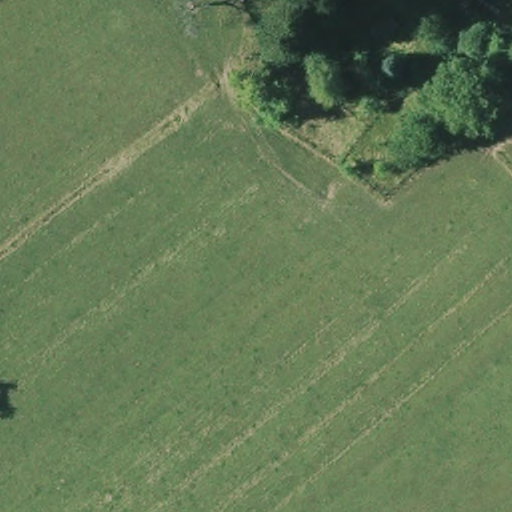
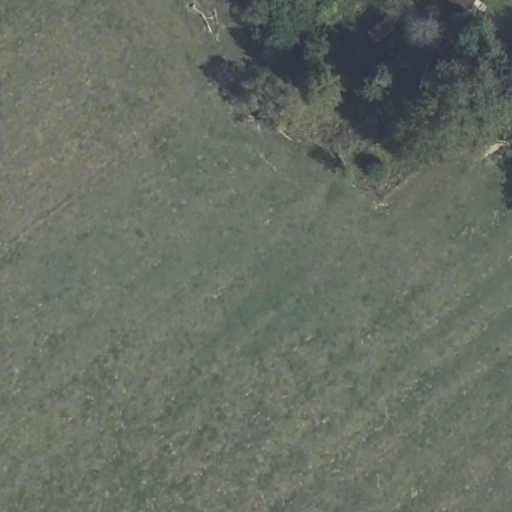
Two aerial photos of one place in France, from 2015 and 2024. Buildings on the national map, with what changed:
unchanged [(465,9),(456,0),(475,0),(465,9)]

